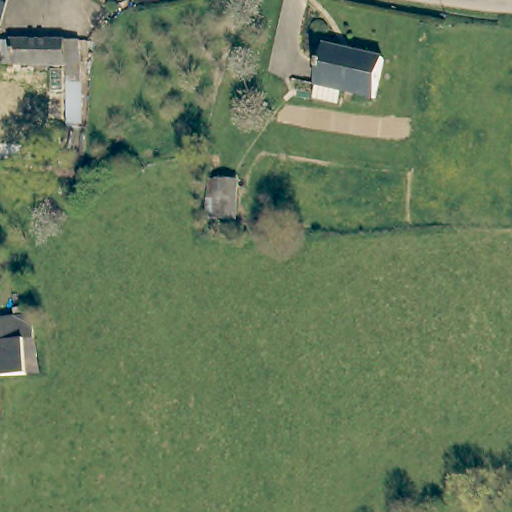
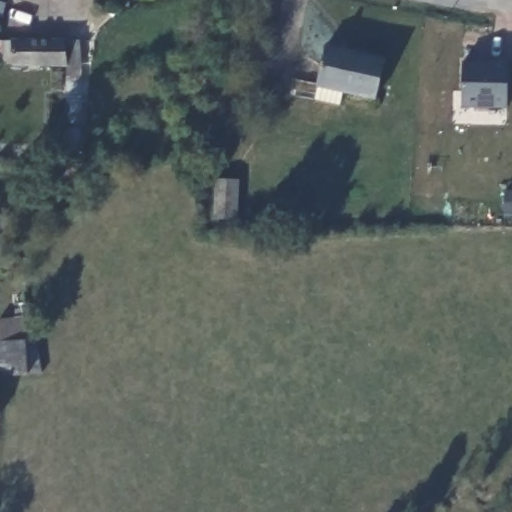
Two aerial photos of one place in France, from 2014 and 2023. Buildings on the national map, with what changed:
unchanged [(0,27),(0,2),(7,4),(0,27)]
unchanged [(65,126),(65,124),(66,92),(50,92),(50,71),(66,71),(66,65),(36,65),(0,64),(0,38),(80,40),(84,126),(65,126)]
unchanged [(313,100),(316,86),(315,85),(324,46),(383,59),(374,99),(342,91),(339,105),(313,100)]
new [(461,106),(462,63),(489,64),(489,60),(508,60),(506,109),(461,106)]
unchanged [(60,152),(83,154),(82,166),(59,164),(60,152)]
unchanged [(236,180),(235,218),(207,217),(209,179),(236,180)]
unchanged [(33,340),(21,340),(26,376),(0,379),(0,317),(30,315),(33,340)]

